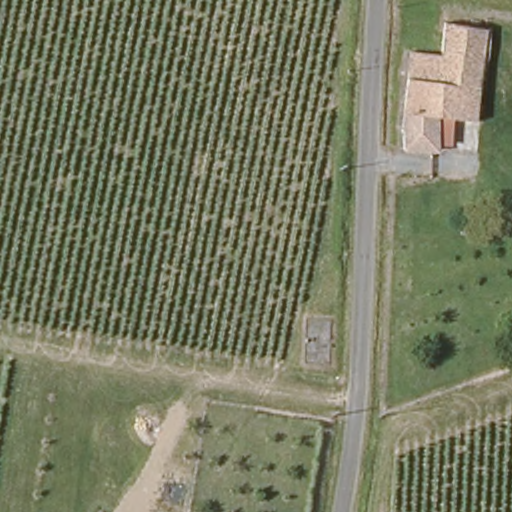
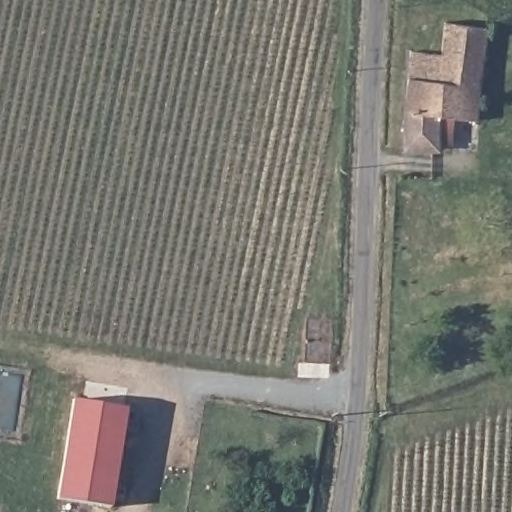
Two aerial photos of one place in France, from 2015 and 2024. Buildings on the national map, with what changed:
unchanged [(473,106),(470,125),(434,122),(432,156),(403,155),(407,55),(438,57),(442,27),(482,31),(473,106)]
new [(105,512),(60,504),(77,406),(131,415),(114,512),(105,512)]

